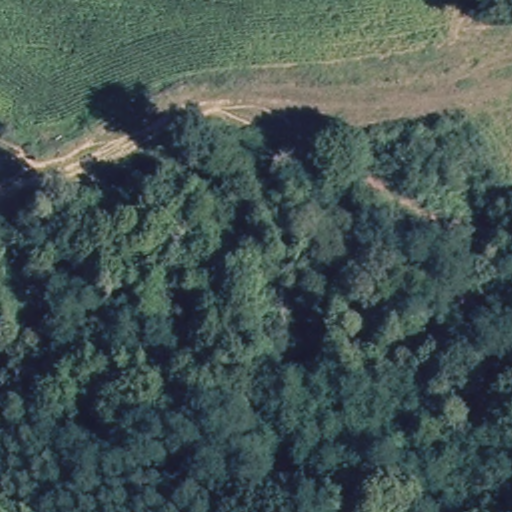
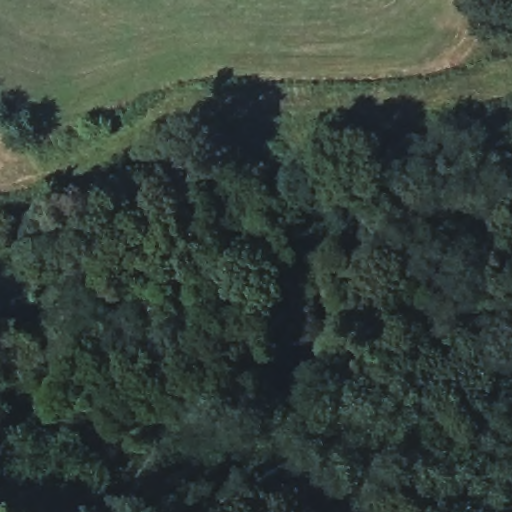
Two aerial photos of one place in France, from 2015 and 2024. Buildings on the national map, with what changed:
[]

